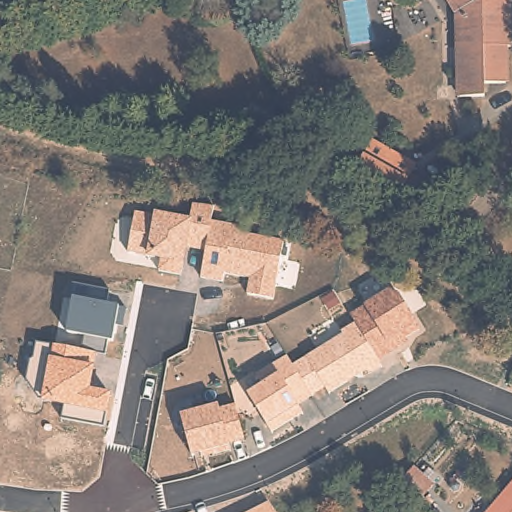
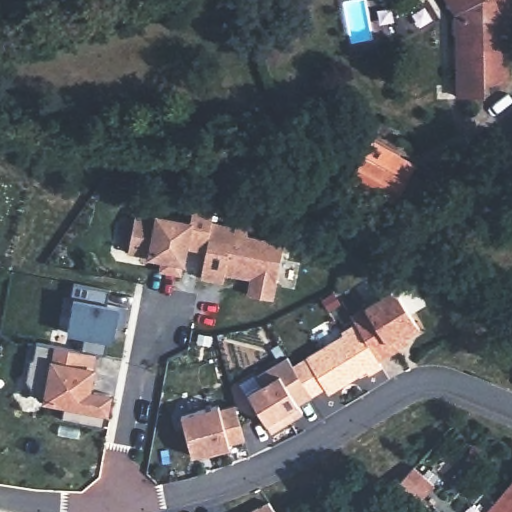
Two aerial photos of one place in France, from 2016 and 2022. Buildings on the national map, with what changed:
unchanged [(480,84),(480,96),(455,96),(455,79),(455,48),(460,47),(459,9),(454,0),(507,0),(507,48),(502,48),(502,55),(502,84),(480,84)]
unchanged [(409,177),(415,169),(435,178),(418,210),(399,201),(393,209),(348,184),(364,154),(409,177)]
unchanged [(248,296),(250,280),(225,275),(224,282),(202,279),(206,253),(189,249),(183,275),(160,272),(162,261),(131,255),(132,239),(137,213),(192,221),(193,205),(214,207),(212,220),(250,228),(249,234),(284,241),(274,300),(248,296)]
unchanged [(106,306),(127,309),(122,327),(117,325),(115,343),(107,341),(105,355),(98,354),(93,390),(112,394),(104,426),(62,419),(66,406),(42,401),(43,396),(36,394),(27,380),(30,360),(35,357),(38,343),(84,351),(87,337),(66,333),(73,285),(109,291),(106,306)]
unchanged [(405,339),(408,343),(380,361),(384,368),(371,377),(367,372),(330,395),(327,391),(301,405),(303,412),(273,434),(249,395),(265,383),(256,376),(277,364),(288,356),(293,365),(343,334),(341,332),(355,324),(351,315),(390,290),(421,330),(405,339)]
unchanged [(229,444),(231,449),(193,458),(181,415),(219,404),(219,408),(235,405),(245,440),(229,444)]
unchanged [(395,483),(410,465),(430,483),(415,500),(395,483)]
unchanged [(512,512),(481,512),(509,479),(512,482),(512,512)]
unchanged [(268,503),(275,512),(249,512),(268,503)]

